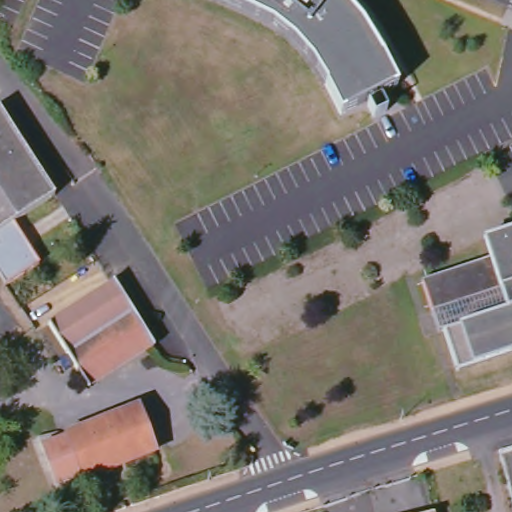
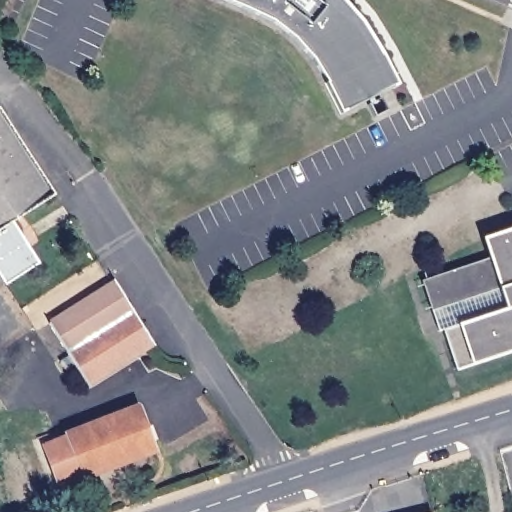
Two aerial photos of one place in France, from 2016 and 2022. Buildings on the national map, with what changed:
unchanged [(321,79),(322,78),(308,55),(290,35),(268,18),(243,6),(230,0),(341,0),(357,19),(378,50),(393,81),(337,110),(321,79)]
unchanged [(0,276),(0,109),(56,196),(15,223),(40,264),(6,286),(0,276)]
unchanged [(459,369),(445,330),(440,331),(423,282),(492,258),(487,239),(512,231),(512,352),(474,365),(459,369)]
unchanged [(152,347),(88,387),(67,353),(50,324),(113,284),(153,347),(152,347)]
unchanged [(156,451),(125,463),(125,460),(85,476),(83,474),(60,483),(52,465),(52,466),(43,444),(140,408),(156,451)]

